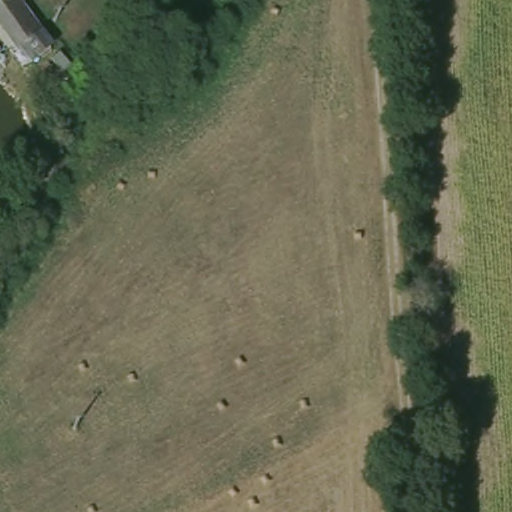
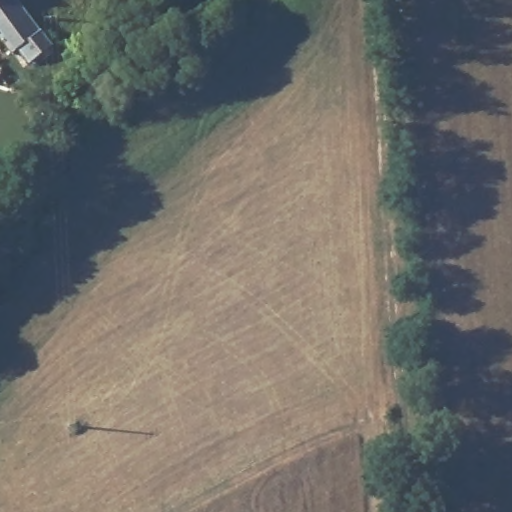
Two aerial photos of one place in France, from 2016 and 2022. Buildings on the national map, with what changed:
unchanged [(8,0),(27,60),(0,28),(0,0),(8,0)]
unchanged [(40,40),(47,48),(31,64),(27,60),(8,0),(15,0),(44,37),(40,40)]

